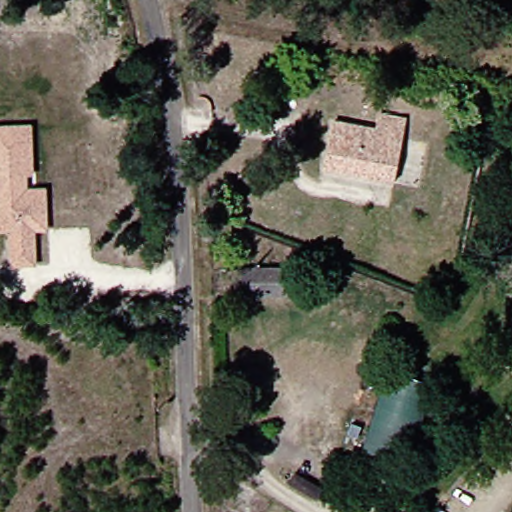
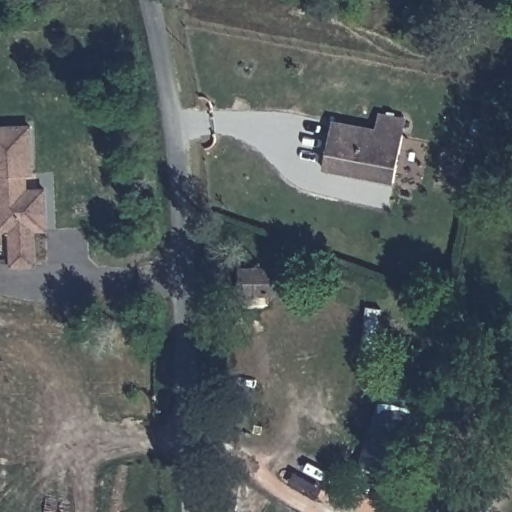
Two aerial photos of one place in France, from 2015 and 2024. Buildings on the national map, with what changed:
unchanged [(372,128),(374,107),(401,112),(388,184),(319,171),(327,121),(372,128)]
unchanged [(38,178),(31,179),(31,190),(50,189),(50,230),(38,230),(38,267),(10,268),(9,233),(0,233),(0,125),(37,124),(38,178)]
unchanged [(284,263),(284,294),(230,294),(230,264),(284,263)]
unchanged [(380,371),(425,383),(394,475),(352,464),(380,371)]
unchanged [(332,479),(324,495),(290,478),(298,463),(332,479)]

